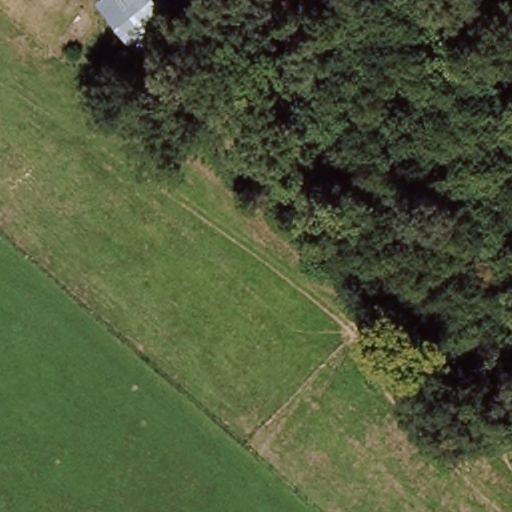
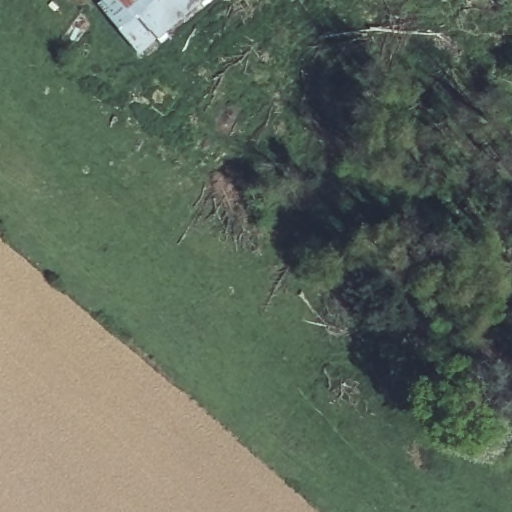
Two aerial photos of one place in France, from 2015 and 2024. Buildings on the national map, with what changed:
unchanged [(140,13),(129,0),(209,0),(141,57),(118,32),(140,13)]

